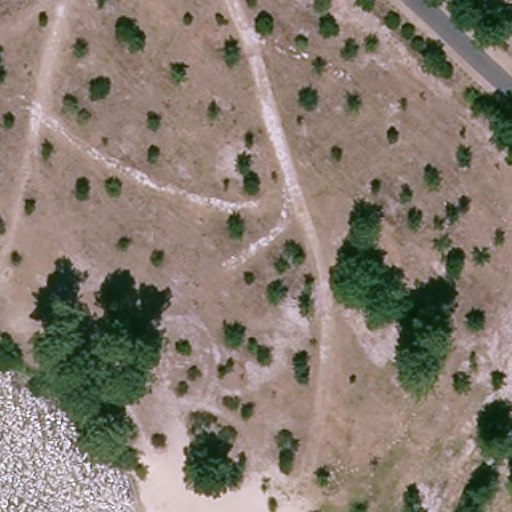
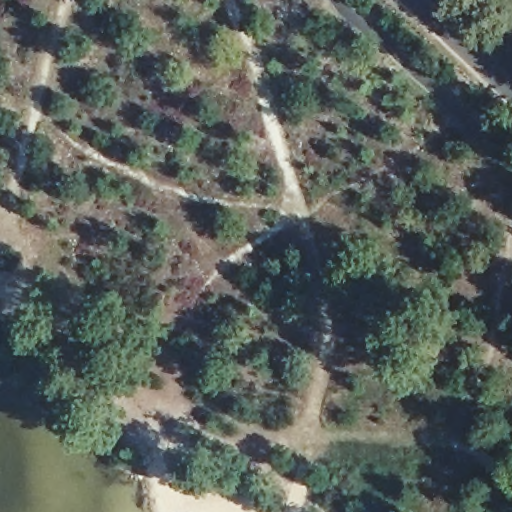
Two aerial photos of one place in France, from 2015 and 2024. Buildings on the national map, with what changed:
[]

